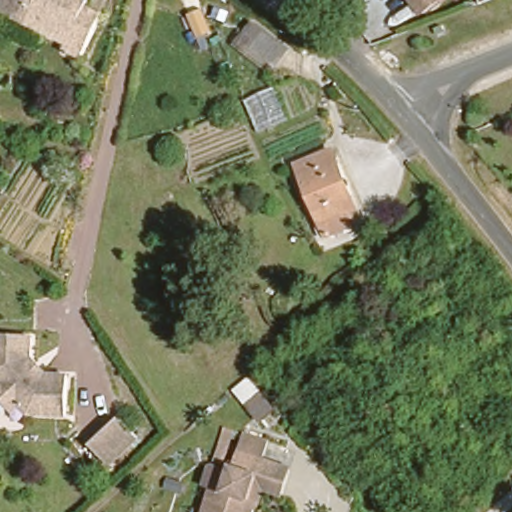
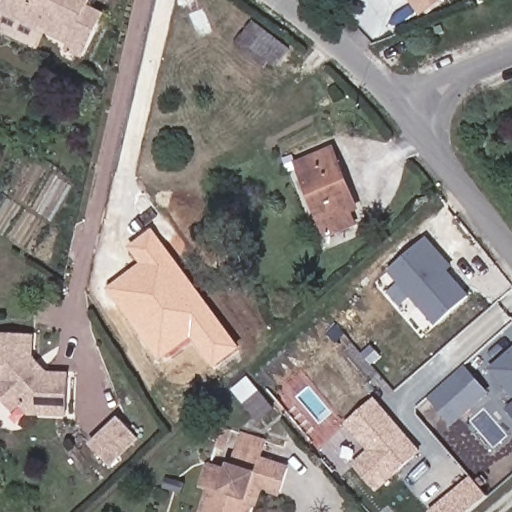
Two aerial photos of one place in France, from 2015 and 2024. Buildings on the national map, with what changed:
unchanged [(102,11),(81,52),(61,40),(65,34),(5,0),(87,0),(85,2),(102,11)]
unchanged [(410,15),(405,0),(438,0),(439,4),(410,15)]
unchanged [(277,71),(261,83),(235,51),(250,40),(277,71)]
unchanged [(354,200),(341,205),(346,217),(322,225),(297,155),(335,141),(354,200)]
new [(138,265),(126,247),(149,229),(239,348),(211,369),(189,337),(157,360),(104,289),(138,265)]
new [(454,267),(449,271),(470,295),(436,326),(388,272),(427,237),(454,267)]
unchanged [(0,380),(1,378),(0,376),(0,332),(31,333),(30,365),(67,367),(65,412),(32,410),(18,396),(11,403),(0,393),(0,380)]
new [(512,349),(512,396),(489,370),(512,349)]
new [(465,365),(490,393),(454,425),(429,398),(465,365)]
new [(248,376),(275,408),(258,422),(231,390),(248,376)]
new [(352,465),(367,451),(344,425),(375,397),(423,452),(377,493),(352,465)]
new [(122,421),(138,440),(106,468),(90,448),(122,421)]
unchanged [(204,481),(224,486),(235,447),(259,455),(286,462),(279,487),(253,480),(244,512),(195,512),(204,481)]
new [(470,512),(430,512),(471,476),(489,496),(470,512)]

